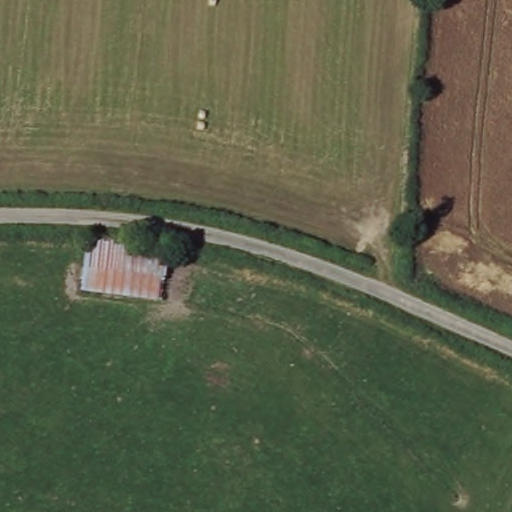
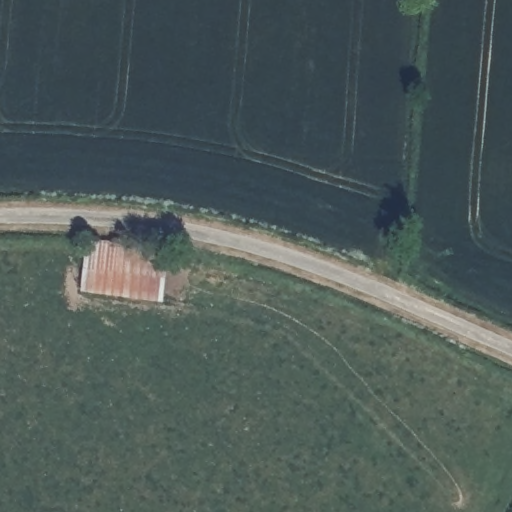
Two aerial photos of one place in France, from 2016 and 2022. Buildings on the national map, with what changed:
unchanged [(86,236),(167,247),(163,300),(80,291),(86,236)]

